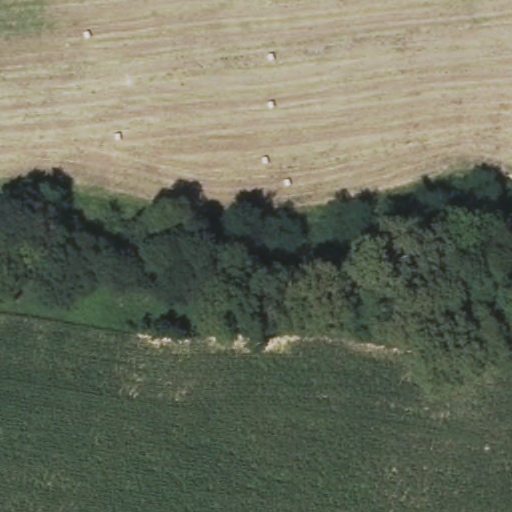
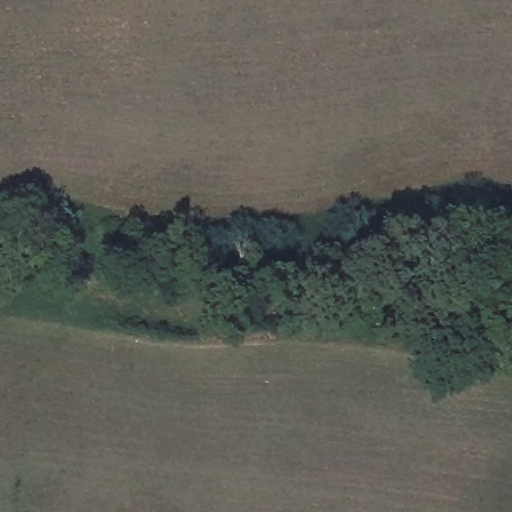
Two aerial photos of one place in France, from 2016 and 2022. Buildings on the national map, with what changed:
[]

